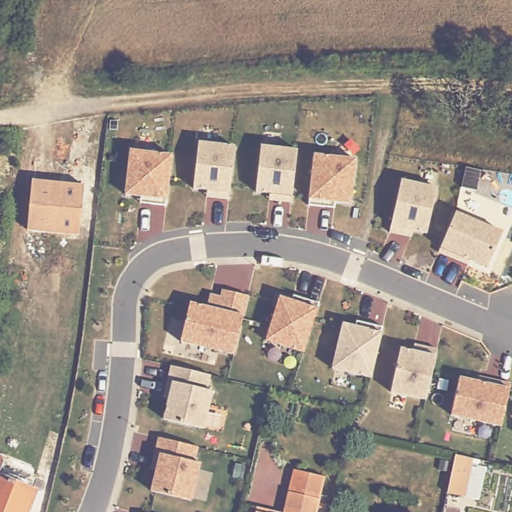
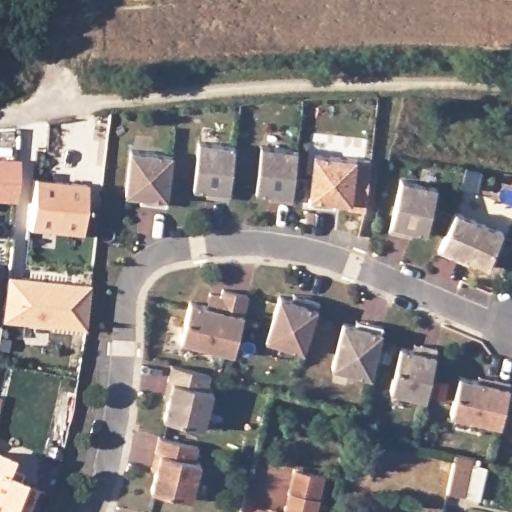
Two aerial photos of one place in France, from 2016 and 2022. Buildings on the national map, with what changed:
unchanged [(235,145),(229,203),(205,200),(206,191),(190,191),(196,142),(235,145)]
unchanged [(298,151),(292,203),(266,201),(267,194),(254,193),(258,145),(298,151)]
unchanged [(170,154),(172,154),(166,210),(139,207),(140,196),(122,193),(127,150),(170,154)]
unchanged [(356,160),(352,209),(305,204),(310,155),(356,160)]
new [(15,203),(0,202),(0,160),(18,161),(15,203)]
unchanged [(84,185),(79,236),(26,231),(31,180),(84,185)]
unchanged [(436,189),(426,236),(388,229),(398,180),(436,189)]
unchanged [(505,232),(488,271),(437,250),(455,210),(505,232)]
new [(88,288),(83,331),(0,322),(0,314),(5,278),(88,288)]
unchanged [(204,305),(206,295),(220,298),(221,290),(247,296),(235,357),(177,344),(188,301),(204,305)]
unchanged [(320,309),(307,353),(263,341),(276,298),(320,309)]
unchanged [(382,332),(372,377),(330,368),(340,323),(382,332)]
unchanged [(435,355),(425,402),(388,394),(397,347),(435,355)]
unchanged [(210,376),(206,390),(212,392),(202,430),(161,419),(166,395),(163,395),(170,366),(210,376)]
unchanged [(510,385),(500,427),(447,414),(456,375),(510,385)]
unchanged [(197,448),(194,460),(200,462),(191,502),(148,492),(152,473),(149,471),(157,438),(197,448)]
unchanged [(472,458),(464,496),(446,492),(454,454),(472,458)]
unchanged [(2,461),(0,466),(17,473),(15,481),(35,490),(26,512),(0,512),(0,457),(2,461)]
unchanged [(255,502),(281,508),(287,481),(293,458),(324,465),(319,488),(313,512),(252,512),(255,502)]
unchanged [(448,471),(437,469),(439,458),(450,461),(448,471)]

